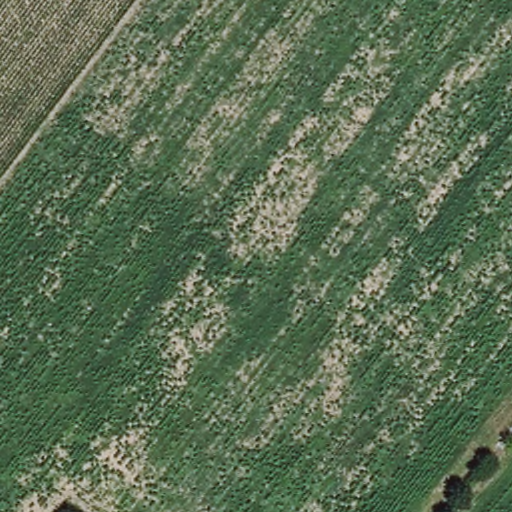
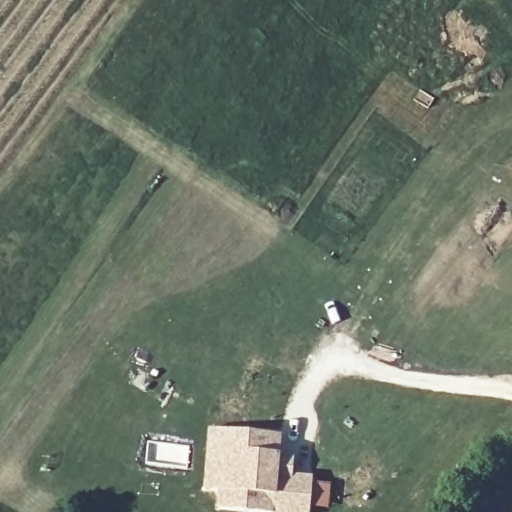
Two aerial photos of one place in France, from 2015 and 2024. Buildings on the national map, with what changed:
new [(206,429),(230,430),(228,451),(219,450),(216,490),(201,489),(206,429)]
new [(216,490),(219,450),(228,451),(230,430),(275,434),(274,457),(290,458),(288,475),(308,477),(306,512),(260,512),(214,508),(216,490)]

